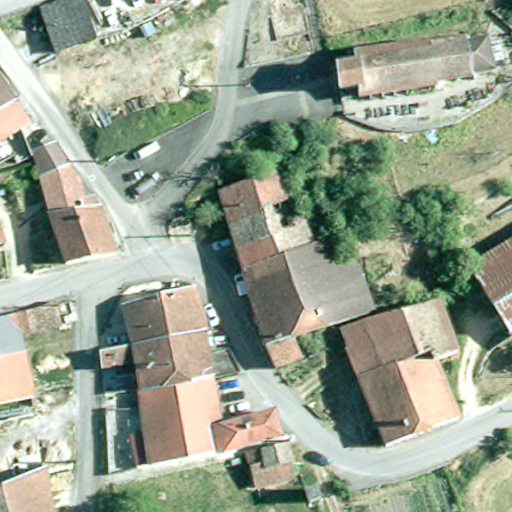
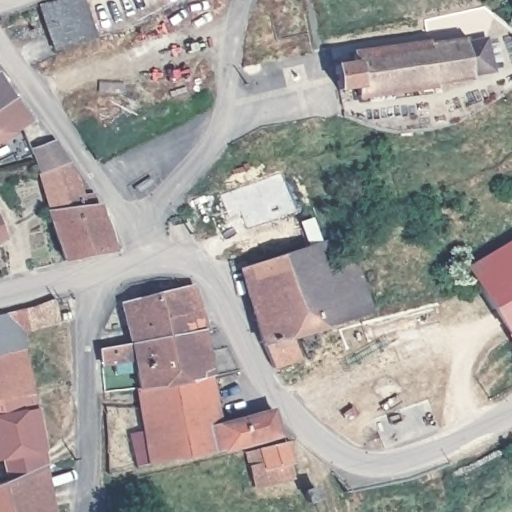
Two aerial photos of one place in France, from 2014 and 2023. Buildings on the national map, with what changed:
unchanged [(59,52),(44,5),(59,0),(86,0),(98,38),(59,52)]
demolished [(307,4),(274,14),(270,0),(306,0),(307,4)]
unchanged [(354,54),(427,43),(426,39),(430,39),(432,45),(463,40),(468,34),(471,37),(468,40),(485,38),(492,70),(474,73),(477,75),(475,79),(468,75),(437,80),(439,86),(434,87),(433,83),(361,96),(360,87),(341,90),(336,65),(355,62),(354,54)]
unchanged [(91,194),(94,204),(50,209),(37,173),(31,156),(14,163),(3,138),(0,140),(0,81),(27,123),(20,128),(29,149),(52,142),(66,165),(78,180),(80,196),(91,194)]
demolished [(241,269),(218,188),(280,168),(307,247),(241,269)]
unchanged [(50,209),(94,204),(96,204),(113,252),(66,261),(53,264),(50,255),(60,252),(48,210),(50,209)]
unchanged [(0,236),(0,228),(2,235),(0,236)]
unchanged [(323,241),(331,266),(355,258),(371,311),(290,336),(297,354),(273,367),(263,342),(241,269),(307,247),(323,241)]
unchanged [(512,242),(512,335),(504,339),(465,264),(512,242)]
unchanged [(160,288),(192,278),(193,280),(205,324),(202,324),(181,328),(141,334),(126,337),(119,297),(160,288)]
unchanged [(0,317),(18,314),(17,312),(60,299),(65,321),(21,331),(33,395),(0,401),(0,317)]
demolished [(431,358),(452,418),(380,446),(343,347),(337,330),(431,300),(453,351),(431,358)]
unchanged [(157,380),(138,382),(137,382),(136,365),(115,370),(112,354),(99,357),(96,342),(101,341),(126,337),(141,334),(181,328),(202,324),(210,370),(157,380)]
unchanged [(157,380),(210,370),(219,418),(272,404),(279,431),(222,445),(221,443),(150,457),(138,382),(157,380)]
new [(37,407),(45,451),(48,468),(46,469),(8,482),(3,460),(0,461),(0,401),(33,395),(37,407)]
unchanged [(254,481),(247,460),(243,446),(283,436),(290,456),(293,470),(254,481)]
unchanged [(48,468),(57,512),(0,512),(0,485),(46,469),(48,468)]

